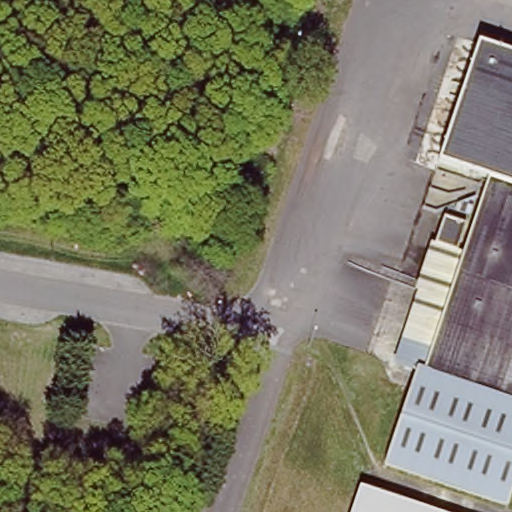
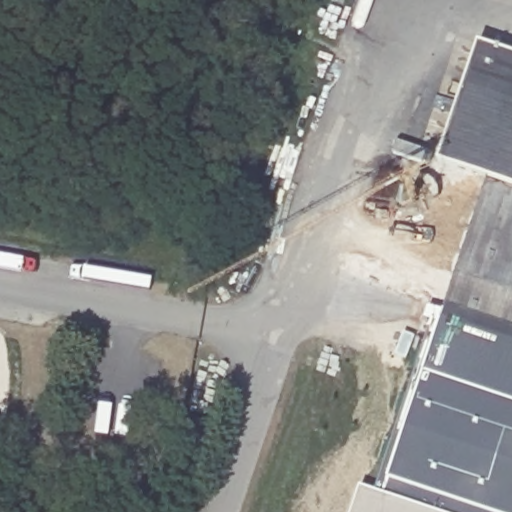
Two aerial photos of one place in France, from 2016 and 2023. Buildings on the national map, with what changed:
unchanged [(512,187),(490,180),(442,158),(480,43),(512,53),(512,187)]
unchanged [(451,484),(391,464),(432,347),(475,224),(490,180),(512,187),(512,503),(511,506),(451,484)]
unchanged [(444,216),(475,224),(432,347),(398,332),(444,216)]
unchanged [(365,482),(412,499),(451,512),(355,512),(365,482)]

